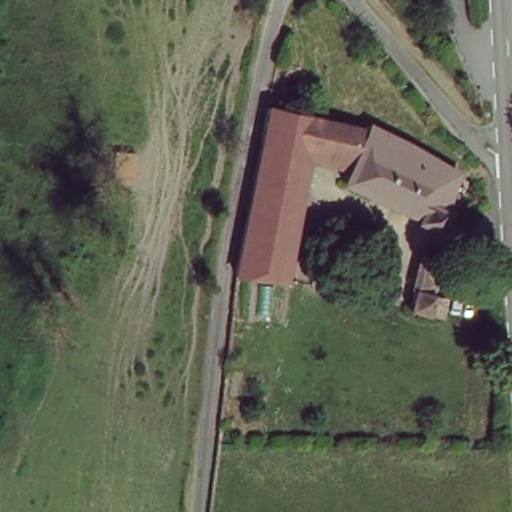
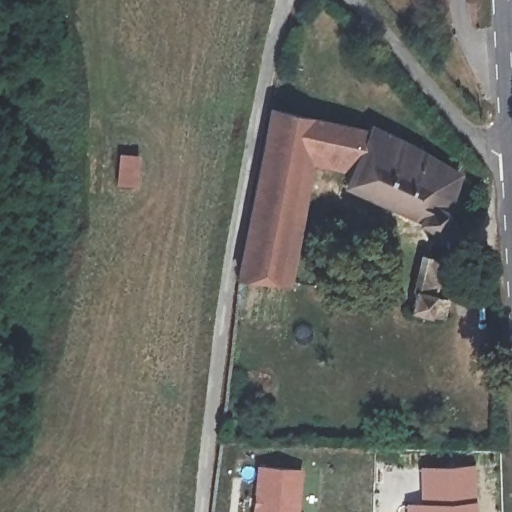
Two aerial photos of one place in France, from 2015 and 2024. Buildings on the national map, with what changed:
unchanged [(310,163),(275,288),(269,287),(238,281),(249,231),(271,121),(273,113),(398,139),(465,175),(439,229),(349,184),(356,168),(323,165),(310,163)]
unchanged [(288,290),(275,288),(310,163),(323,165),(288,290)]
unchanged [(409,312),(427,261),(443,266),(432,297),(446,301),(441,318),(409,312)]
new [(305,469),(301,512),(252,512),(256,464),(305,469)]
new [(419,464),(477,464),(477,498),(419,501),(419,464)]
new [(419,501),(477,498),(478,512),(404,512),(404,502),(419,501)]

